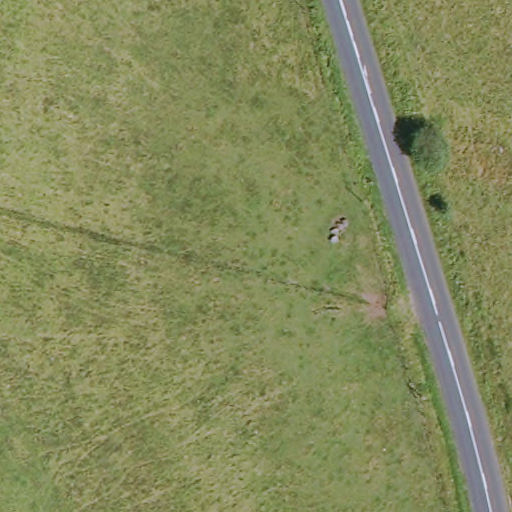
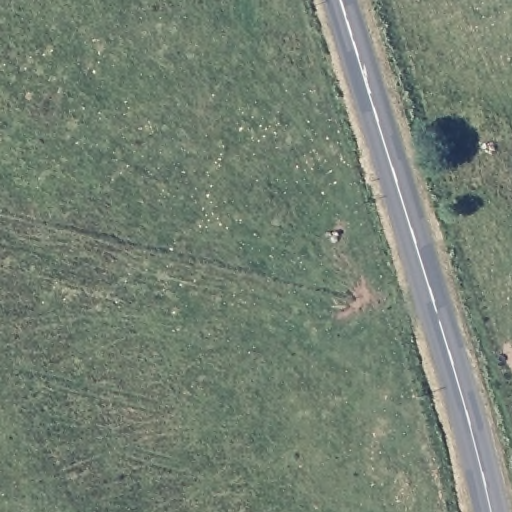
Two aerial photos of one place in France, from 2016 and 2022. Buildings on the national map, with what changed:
[]

